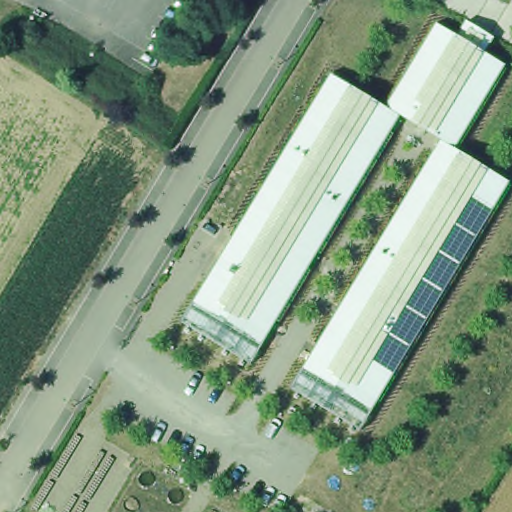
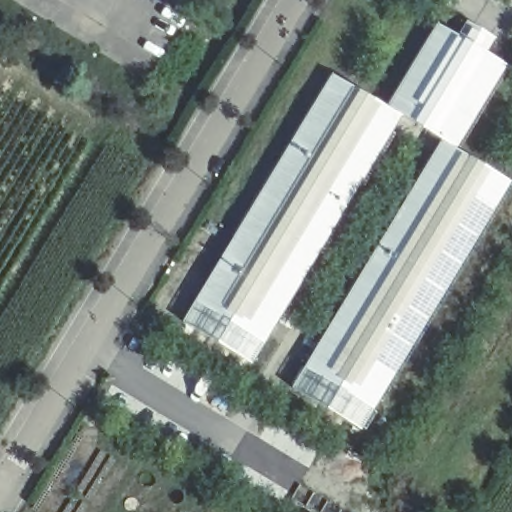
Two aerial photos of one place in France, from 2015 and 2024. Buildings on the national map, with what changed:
unchanged [(330,73),(385,106),(438,22),(461,35),(469,22),(497,41),(491,53),(510,62),(456,148),(512,181),(512,186),(359,432),(288,391),(441,142),(402,117),(246,371),(176,325),(330,73)]

